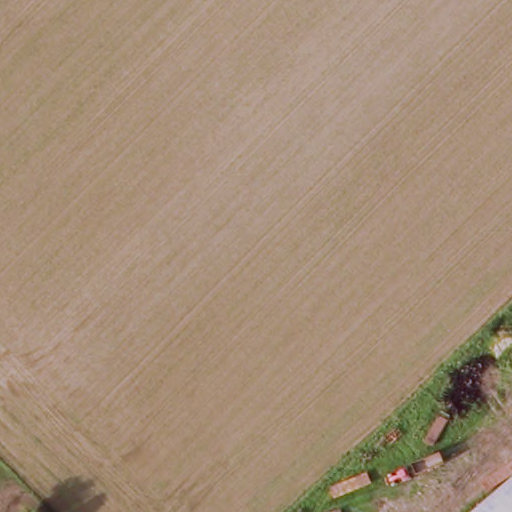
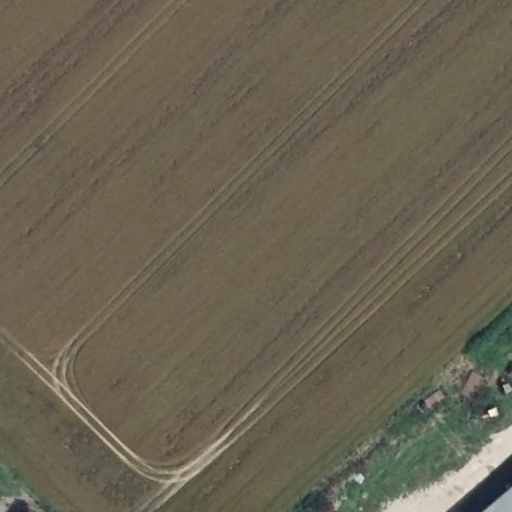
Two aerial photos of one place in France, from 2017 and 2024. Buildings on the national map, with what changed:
unchanged [(512,485),(512,512),(481,512),(512,485)]

